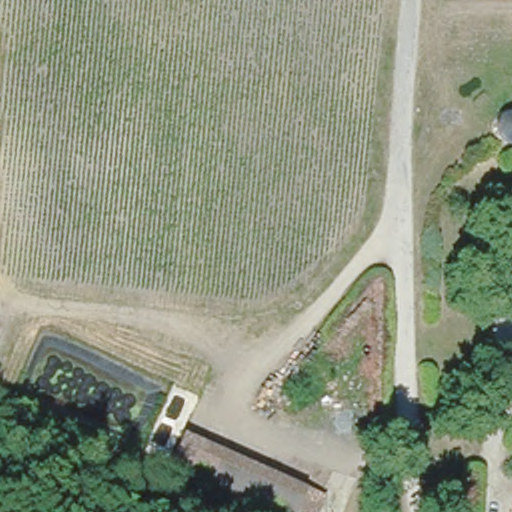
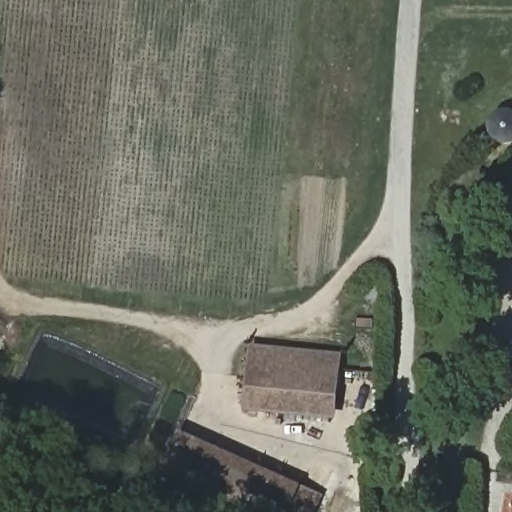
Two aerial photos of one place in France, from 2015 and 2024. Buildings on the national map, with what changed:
unchanged [(489,119),(491,115),(493,113),(496,111),(499,109),(504,108),(508,108),(512,109),(512,143),(510,144),(507,144),(503,144),(500,143),(497,141),(493,139),(491,137),(490,134),(489,131),(488,128),(488,123),(489,119)]
new [(343,353),(338,419),(245,410),(250,344),(343,353)]
unchanged [(320,498),(314,512),(249,512),(162,474),(178,435),(320,498)]
unchanged [(512,494),(512,512),(506,512),(508,494),(512,494)]

